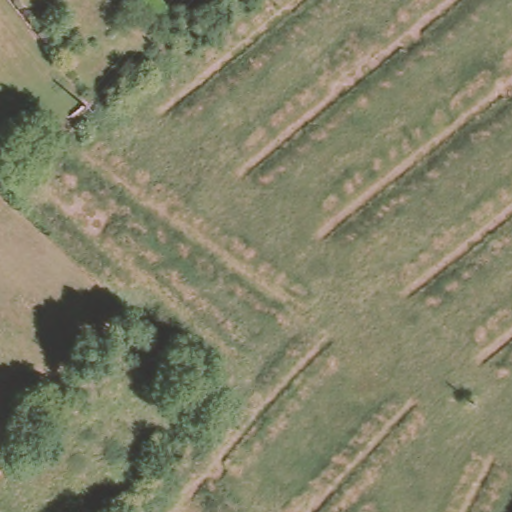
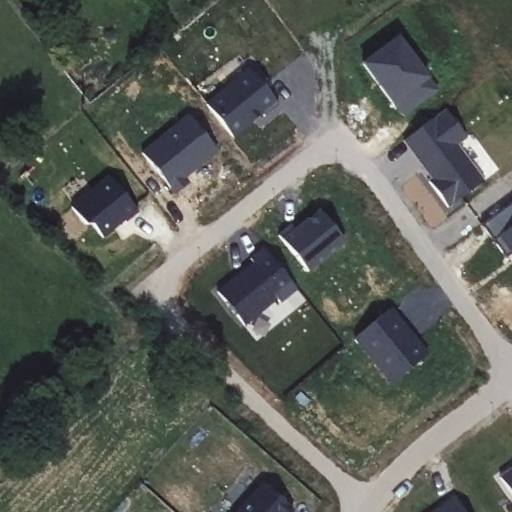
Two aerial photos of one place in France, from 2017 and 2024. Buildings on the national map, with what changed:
new [(392,104),(362,63),(397,35),(437,91),(404,117),(392,104)]
new [(232,138),(205,103),(250,69),(277,103),(232,138)]
new [(429,181),(432,179),(405,141),(446,109),(467,137),(457,146),(482,180),(449,207),(429,181)]
new [(190,184),(175,194),(141,151),(186,114),(218,153),(186,178),(190,184)]
new [(92,224),(86,225),(70,206),(107,175),(139,211),(126,222),(125,220),(104,238),(92,224)]
new [(495,238),(484,226),(512,203),(512,254),(511,253),(505,257),(494,240),(495,238)]
new [(280,239),(277,235),(289,225),(294,230),(317,210),(345,243),(308,272),(280,239)]
new [(275,299),(245,325),(217,290),(253,262),(250,259),(263,248),(297,290),(280,304),(275,299)]
new [(355,339),(392,308),(427,353),(390,384),(355,339)]
new [(512,463),(512,480),(504,469),(512,463)]
new [(291,512),(235,512),(260,483),(292,511),(291,512)]
new [(457,491),(473,512),(428,512),(457,491)]

